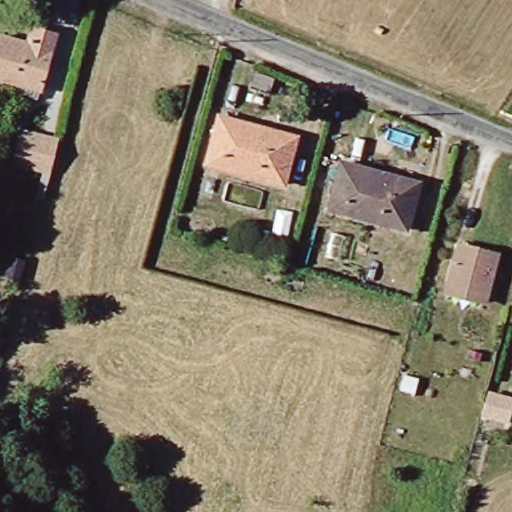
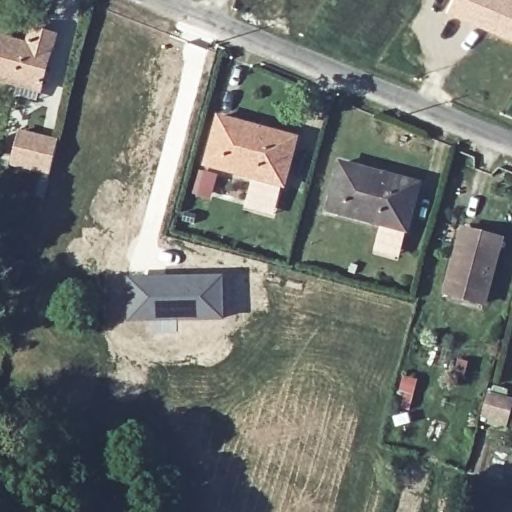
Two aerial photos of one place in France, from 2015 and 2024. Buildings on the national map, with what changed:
new [(446,12),(450,0),(512,0),(512,41),(446,12)]
unchanged [(27,26),(51,33),(35,90),(0,80),(0,37),(23,43),(27,26)]
unchanged [(293,140),(279,186),(204,163),(219,117),(293,140)]
unchanged [(48,172),(7,161),(15,130),(56,140),(48,172)]
unchanged [(414,180),(399,227),(323,204),(337,157),(414,180)]
new [(199,168),(219,172),(210,200),(192,194),(199,168)]
new [(250,181),(282,189),(274,217),(243,208),(250,181)]
unchanged [(464,243),(501,253),(491,291),(488,300),(451,289),(453,281),(464,243)]
unchanged [(1,273),(8,251),(19,254),(14,276),(1,273)]
new [(123,273),(223,274),(224,320),(122,322),(123,273)]
unchanged [(512,408),(506,428),(481,421),(487,400),(512,408)]

